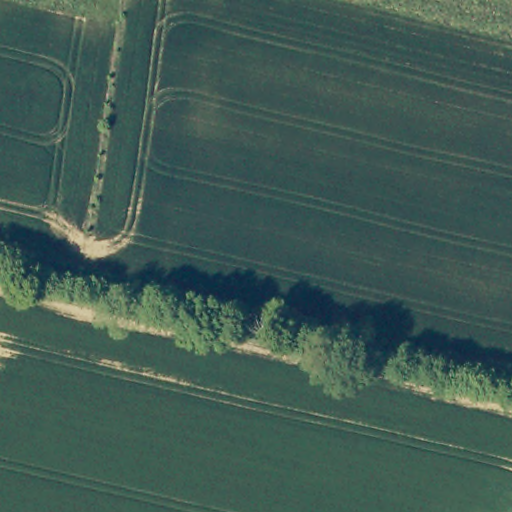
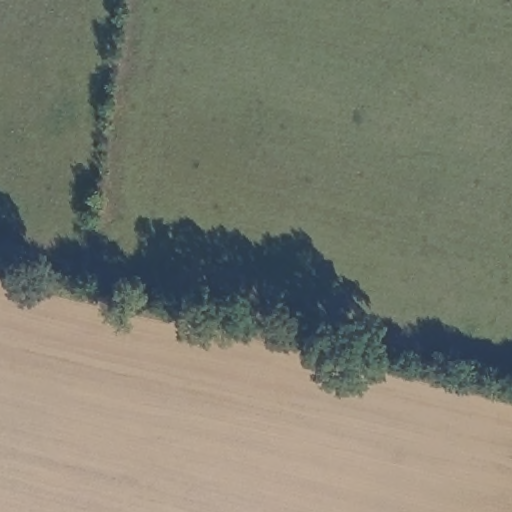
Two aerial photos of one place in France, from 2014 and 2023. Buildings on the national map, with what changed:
[]

